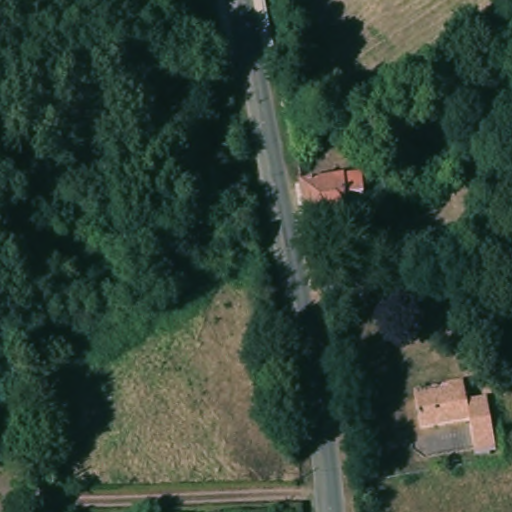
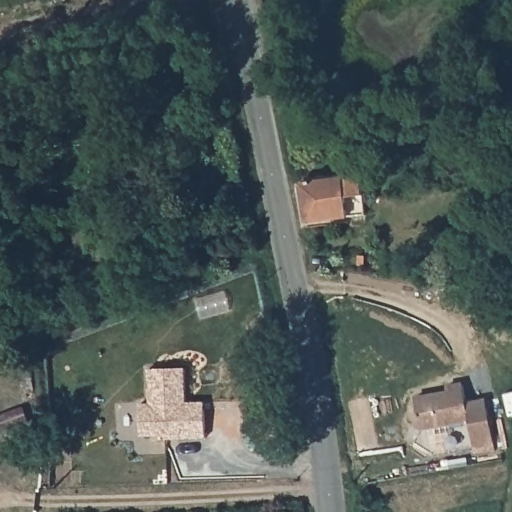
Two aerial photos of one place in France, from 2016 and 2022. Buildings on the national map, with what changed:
unchanged [(353,175),(358,214),(300,223),(294,184),(353,175)]
new [(149,402),(147,368),(187,367),(187,401),(207,401),(208,438),(166,440),(166,436),(141,436),(140,403),(149,402)]
unchanged [(457,391),(457,385),(472,383),(474,401),(492,400),(500,453),(478,455),(476,422),(428,427),(423,396),(457,391)]
unchanged [(25,409),(0,418),(0,399),(20,392),(25,409)]

